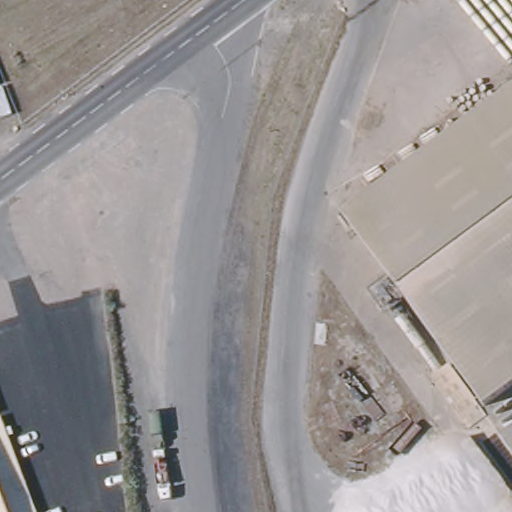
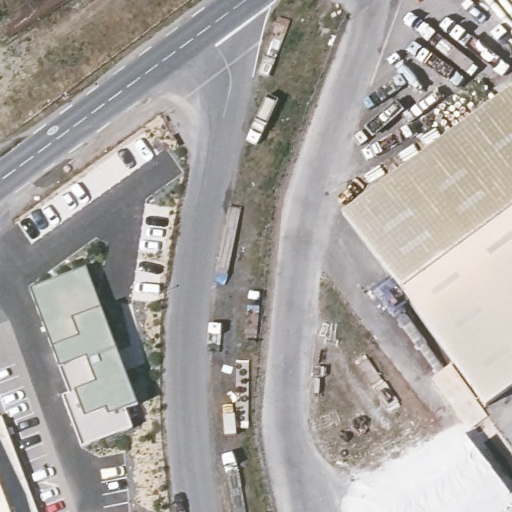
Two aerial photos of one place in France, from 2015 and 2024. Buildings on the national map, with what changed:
unchanged [(484,407),(341,213),(512,87),(512,387),(484,407)]
new [(85,266),(138,405),(126,408),(133,428),(81,447),(61,395),(66,393),(28,287),(85,266)]
unchanged [(0,512),(0,419),(35,512),(0,512)]

